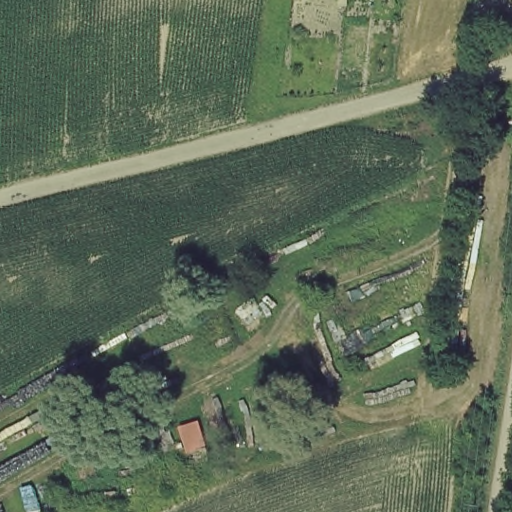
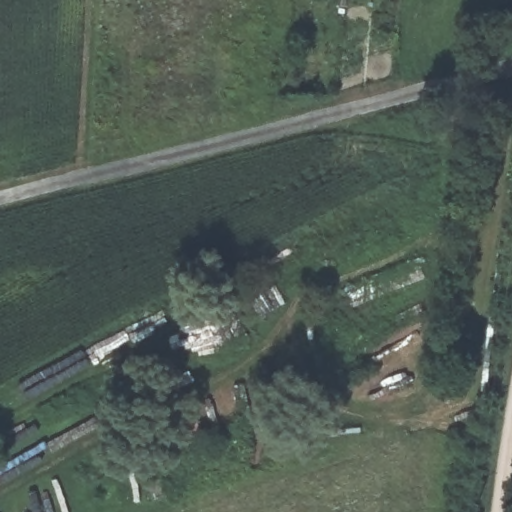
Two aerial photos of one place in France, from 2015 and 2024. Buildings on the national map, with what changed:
unchanged [(209,449),(188,456),(179,426),(203,420),(209,449)]

